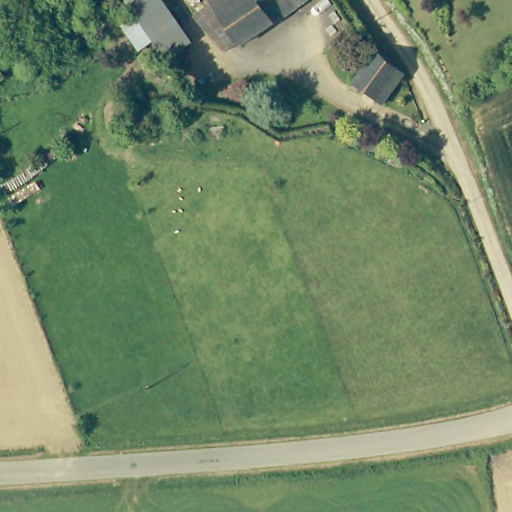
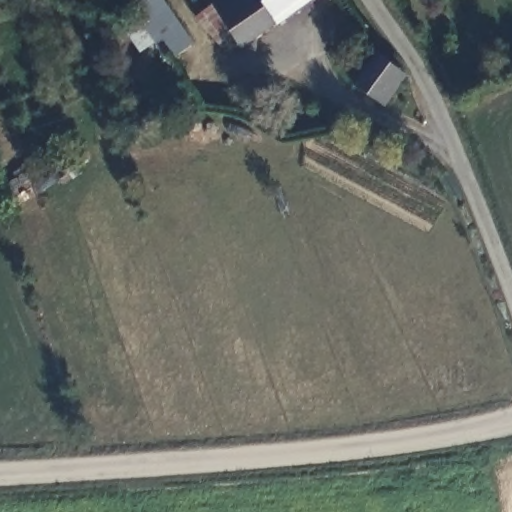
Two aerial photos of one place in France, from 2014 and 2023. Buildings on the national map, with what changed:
unchanged [(132,11),(129,7),(124,0),(162,0),(189,39),(165,56),(160,48),(156,43),(138,55),(116,21),(132,11)]
unchanged [(238,44),(225,53),(195,19),(222,0),(315,0),(245,51),(238,44)]
unchanged [(402,70),(403,72),(385,102),(351,84),(374,52),(402,70)]

